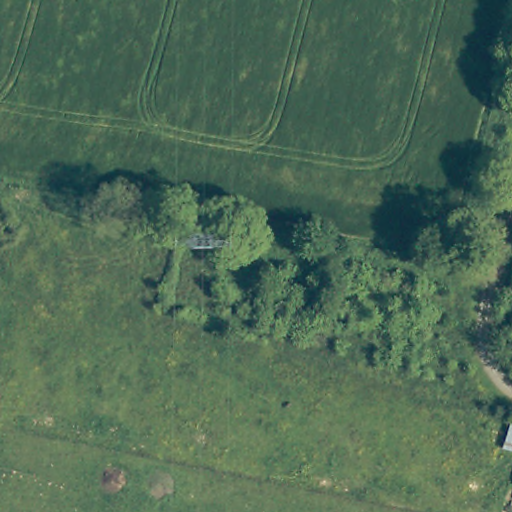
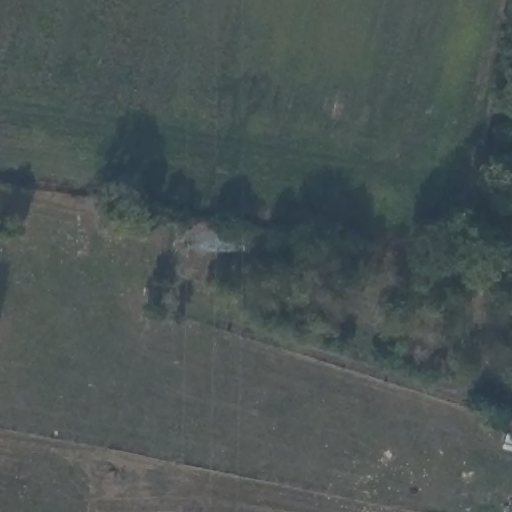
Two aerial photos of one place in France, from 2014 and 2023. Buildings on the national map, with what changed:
unchanged [(512,450),(499,446),(507,422),(512,424),(512,450)]

